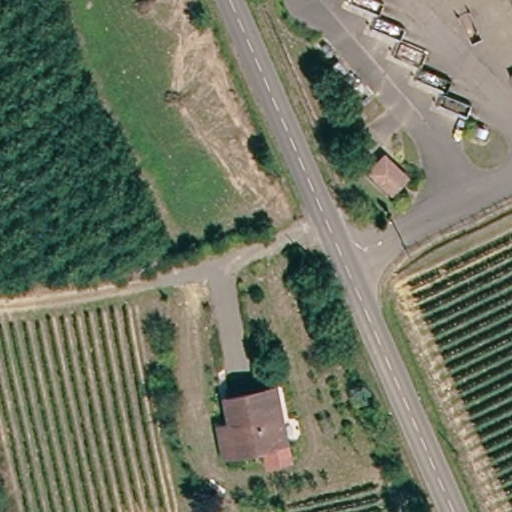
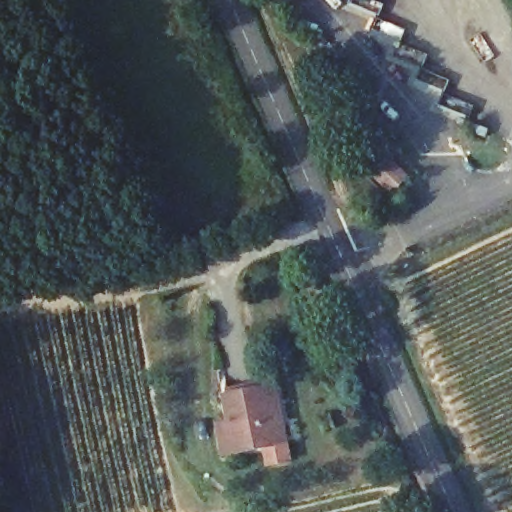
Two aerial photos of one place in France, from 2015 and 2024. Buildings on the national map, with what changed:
unchanged [(379,160),(402,183),(386,200),(362,178),(379,160)]
unchanged [(221,429),(239,424),(232,399),(230,390),(262,382),(264,391),(278,387),(286,422),(291,442),(282,444),(246,452),(228,456),(221,429)]

